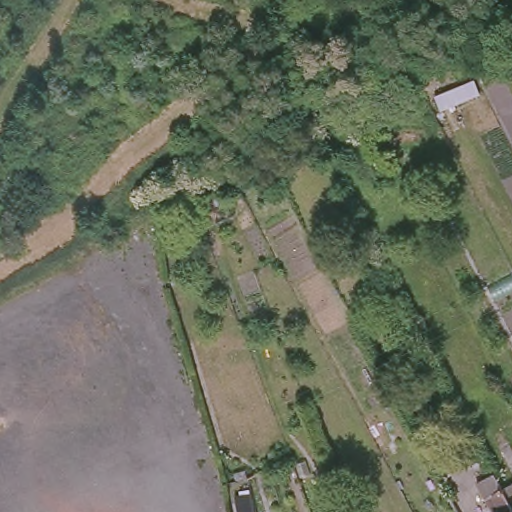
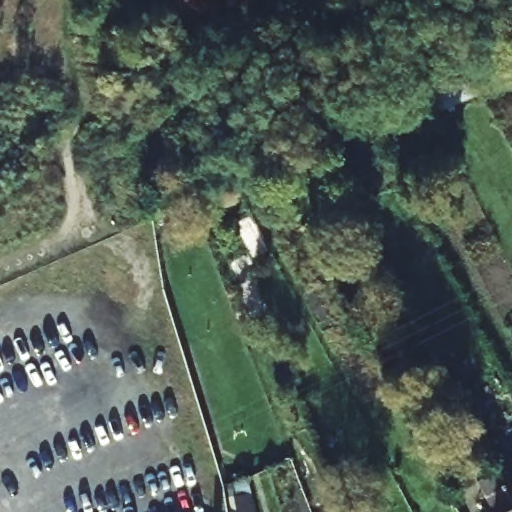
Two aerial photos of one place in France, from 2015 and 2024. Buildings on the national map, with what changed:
unchanged [(426,396),(435,414),(427,418),(417,401),(426,396)]
unchanged [(500,512),(490,493),(481,495),(474,485),(493,474),(512,508),(512,512),(500,512)]

